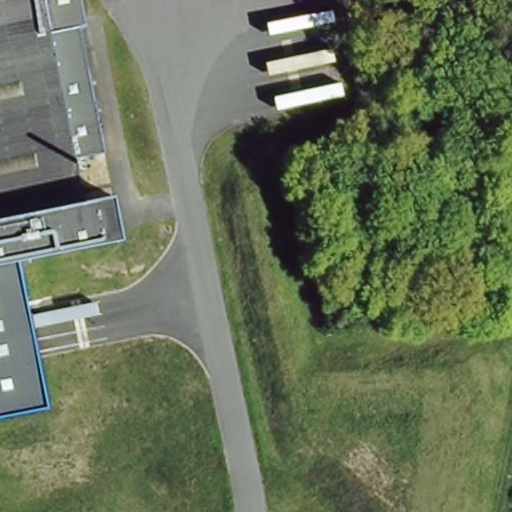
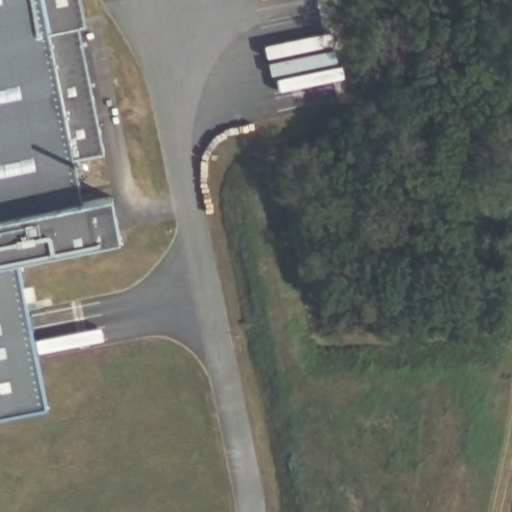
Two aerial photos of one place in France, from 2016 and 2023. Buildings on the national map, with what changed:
unchanged [(86,21),(78,24),(103,149),(74,155),(80,188),(0,205),(0,0),(82,0),(86,21)]
unchanged [(82,196),(106,192),(115,234),(0,258),(0,205),(80,188),(82,196)]
unchanged [(45,408),(0,416),(0,257),(17,254),(45,408)]

